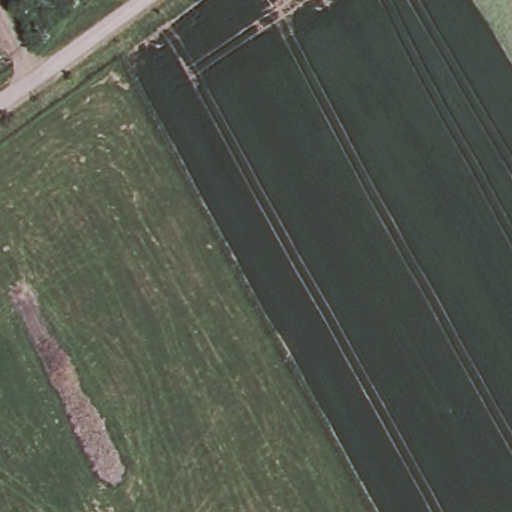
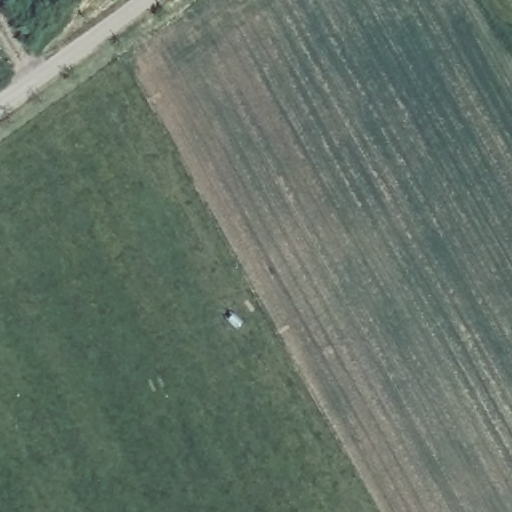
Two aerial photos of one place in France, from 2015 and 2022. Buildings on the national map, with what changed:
[]

